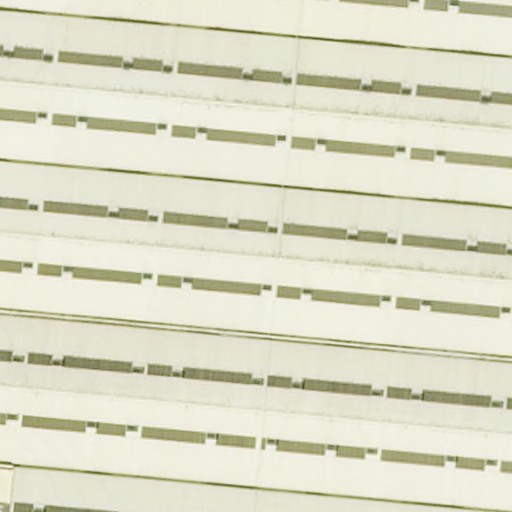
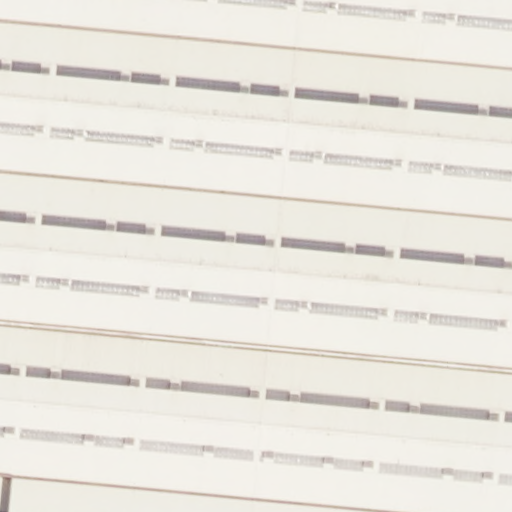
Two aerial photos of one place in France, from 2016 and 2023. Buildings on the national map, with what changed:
unchanged [(95,0),(92,3),(0,119),(0,0),(95,0)]
unchanged [(512,0),(512,279),(394,60),(92,3),(95,0),(512,0)]
unchanged [(512,279),(512,512),(6,512),(8,476),(0,475),(0,119),(92,3),(394,60),(512,279)]

